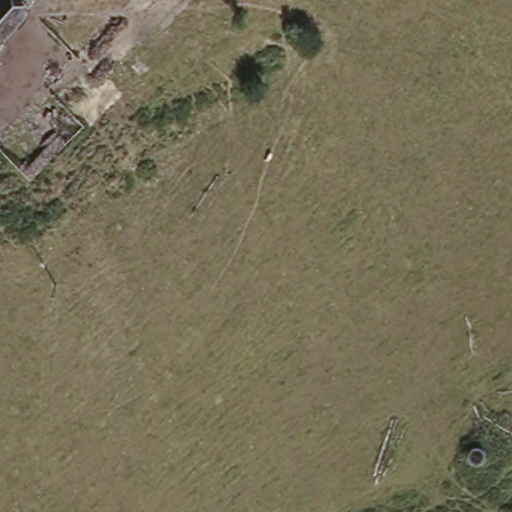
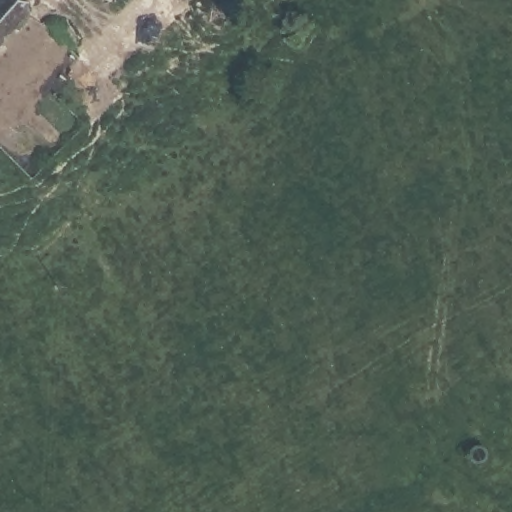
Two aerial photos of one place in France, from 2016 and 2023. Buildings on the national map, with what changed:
unchanged [(35,10),(0,48),(0,0),(23,0),(35,10)]
unchanged [(0,148),(0,135),(42,90),(52,101),(85,131),(35,180),(4,152),(0,148)]

